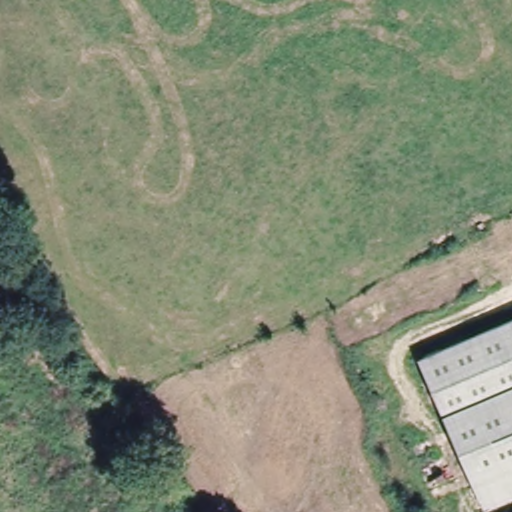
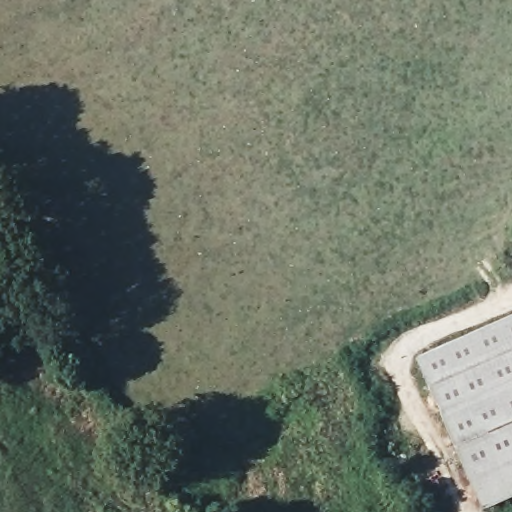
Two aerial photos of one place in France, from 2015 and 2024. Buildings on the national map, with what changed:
unchanged [(487,512),(484,512),(417,356),(512,316),(512,501),(487,512)]

